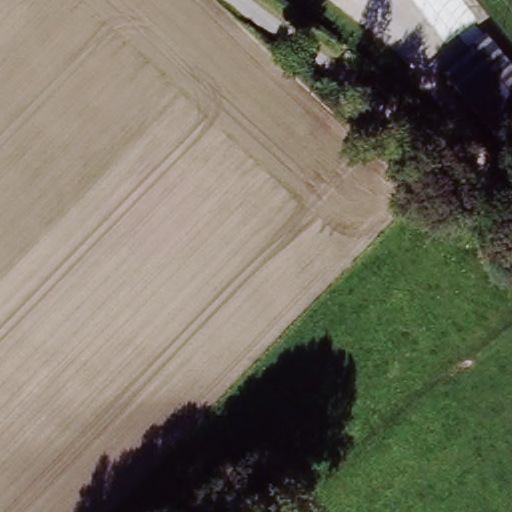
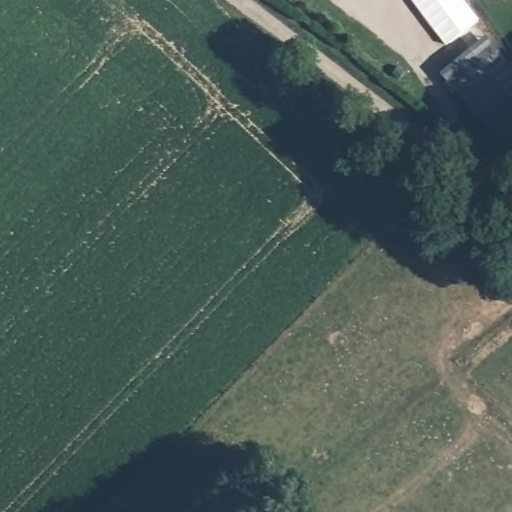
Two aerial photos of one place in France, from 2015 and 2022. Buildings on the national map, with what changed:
unchanged [(512,65),(512,117),(486,136),(438,69),(487,32),(512,65)]

